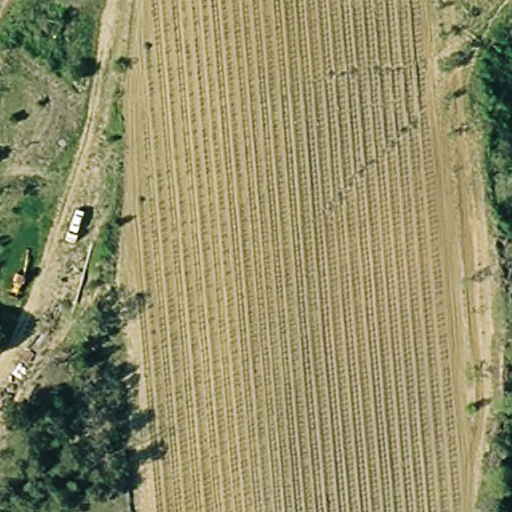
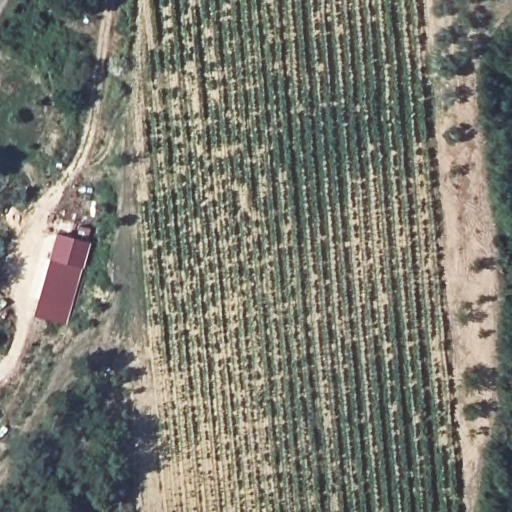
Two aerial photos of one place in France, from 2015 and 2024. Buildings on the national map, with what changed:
new [(56,234),(90,242),(83,268),(67,325),(34,316),(56,234)]

